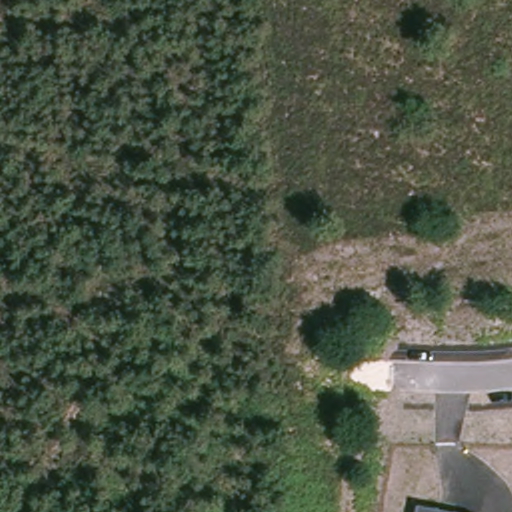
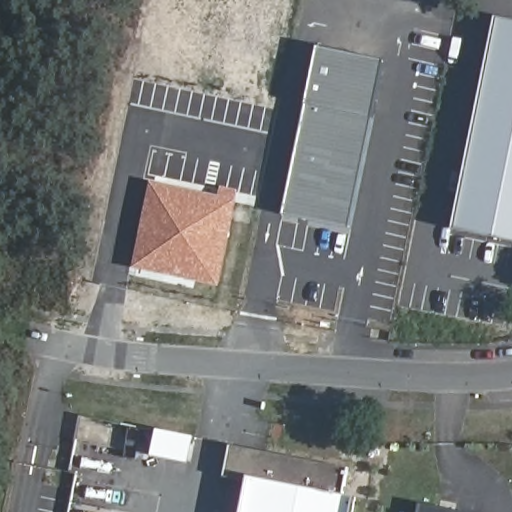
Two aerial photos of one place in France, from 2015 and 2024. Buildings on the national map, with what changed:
new [(512,243),(456,232),(498,19),(512,21),(512,243)]
new [(319,51),(353,59),(341,115),(376,122),(352,235),(283,221),(319,51)]
new [(353,59),(388,66),(376,122),(341,115),(353,59)]
new [(221,188),(239,192),(236,204),(220,286),(134,268),(150,181),(219,196),(221,188)]
new [(248,481),(225,477),(230,446),(348,468),(345,495),(355,497),(352,512),(242,512),(248,481)]
unchanged [(420,505),(459,512),(419,512),(420,505)]

